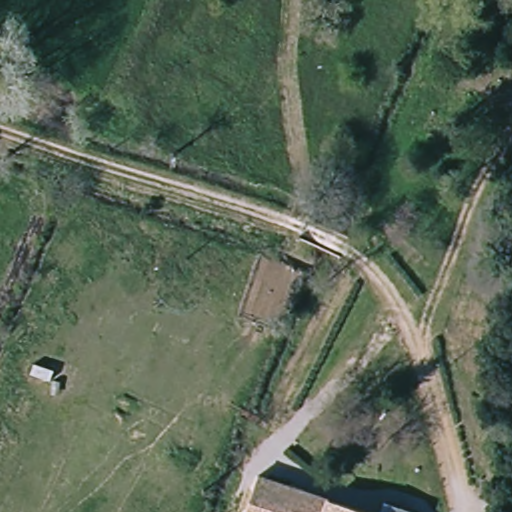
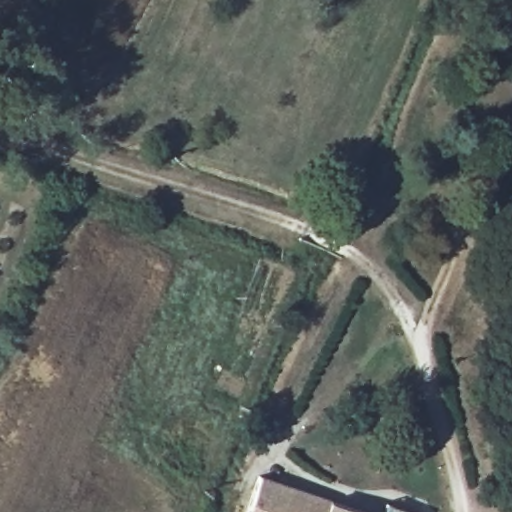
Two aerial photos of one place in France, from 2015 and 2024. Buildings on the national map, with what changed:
unchanged [(380,512),(250,512),(264,474),(380,512)]

